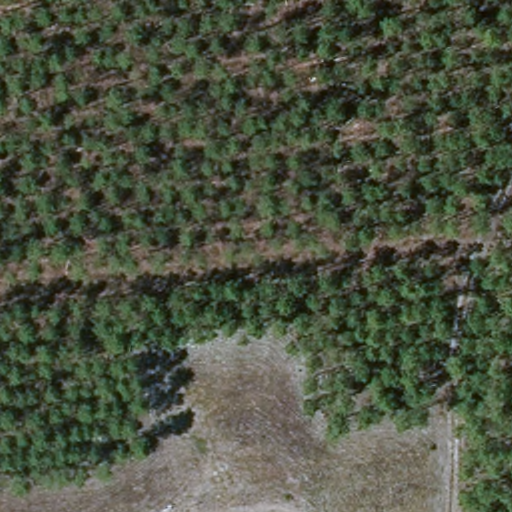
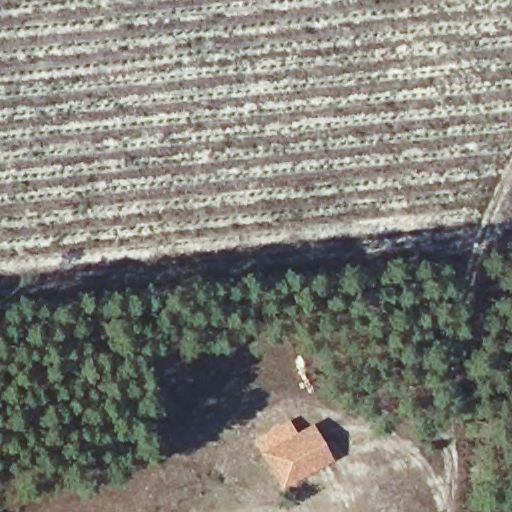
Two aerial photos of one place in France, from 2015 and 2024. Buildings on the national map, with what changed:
new [(333,462),(281,489),(261,452),(312,423),(333,462)]

